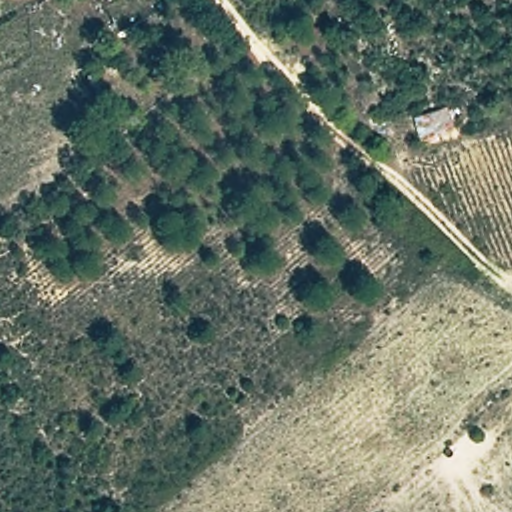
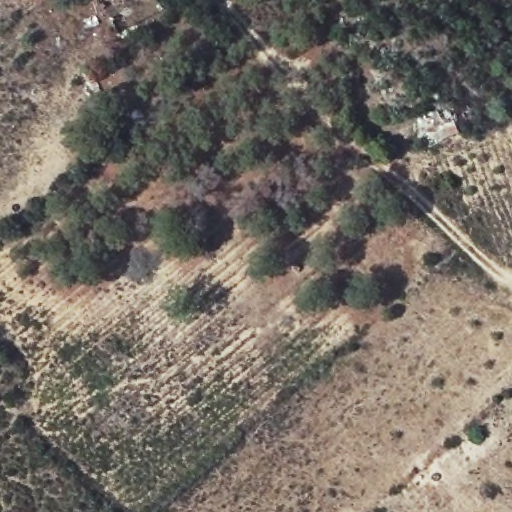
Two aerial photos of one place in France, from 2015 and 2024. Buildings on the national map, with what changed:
unchanged [(104,13),(100,0),(134,0),(135,3),(104,13)]
unchanged [(456,113),(461,128),(427,138),(425,120),(456,113)]

